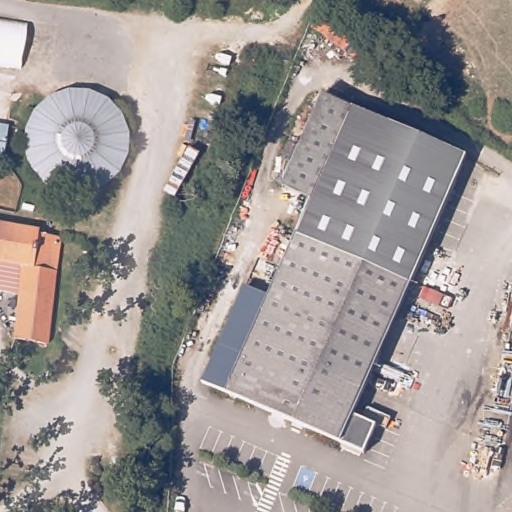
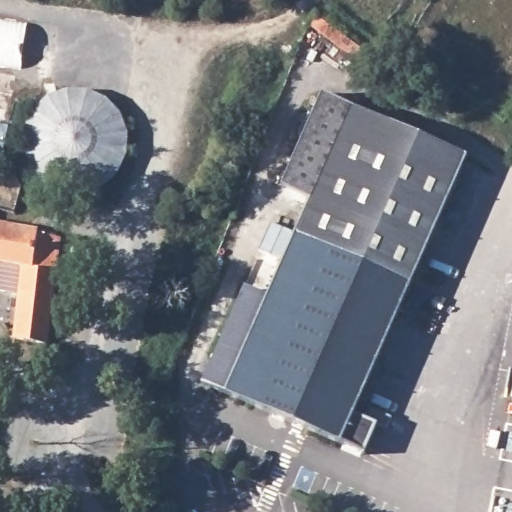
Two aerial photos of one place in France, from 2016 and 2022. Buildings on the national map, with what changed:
unchanged [(30,25),(24,68),(0,64),(0,20),(30,25)]
unchanged [(41,99),(65,89),(91,92),(112,108),(122,132),(119,158),(103,179),(79,189),(53,186),(32,170),(22,146),(25,120),(41,99)]
unchanged [(248,281),(272,292),(312,202),(283,190),(325,98),(467,162),(360,411),(383,421),(369,451),(207,376),(248,281)]
unchanged [(11,125),(4,160),(1,159),(0,165),(0,123),(11,125)]
unchanged [(1,222),(31,226),(31,232),(60,236),(56,267),(47,345),(15,341),(24,267),(0,264),(0,222),(1,222)]

